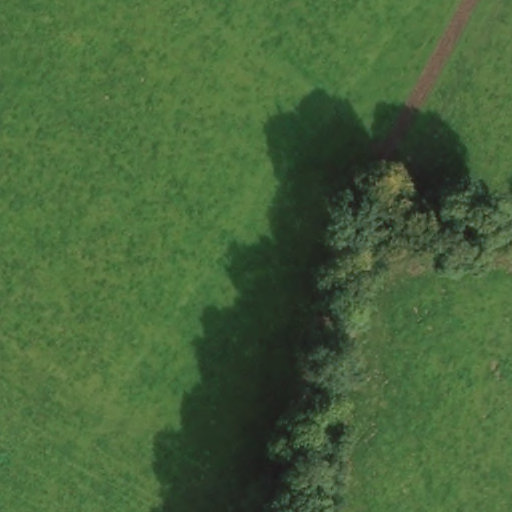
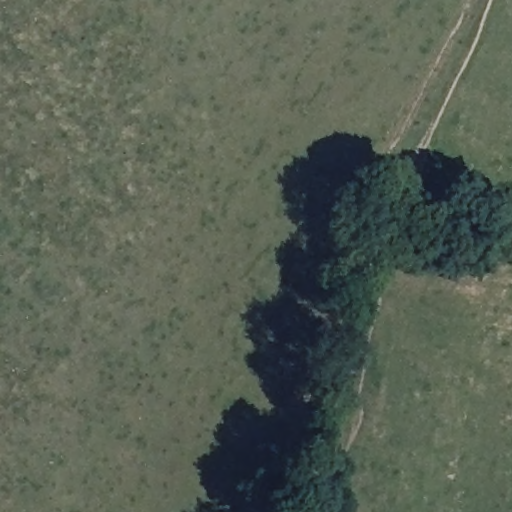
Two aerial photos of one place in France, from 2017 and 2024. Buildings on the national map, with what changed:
[]

